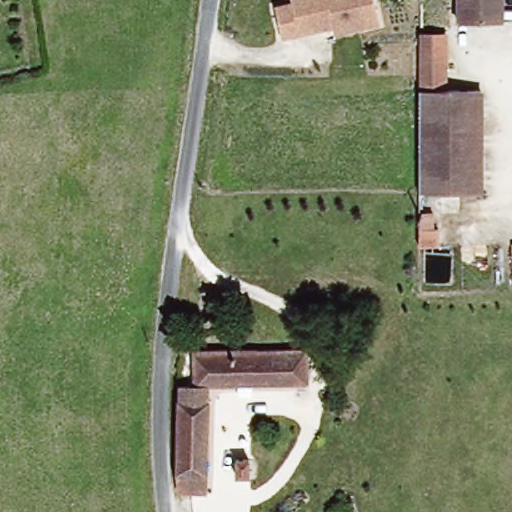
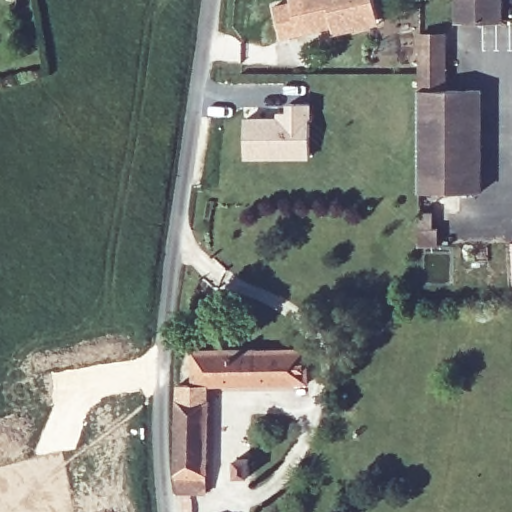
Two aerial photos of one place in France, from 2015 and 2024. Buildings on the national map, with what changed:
unchanged [(334,35),(332,26),(282,38),(273,6),(291,1),(291,0),(374,0),(379,25),(334,35)]
unchanged [(461,23),(461,0),(505,0),(506,22),(461,23)]
unchanged [(422,37),(450,37),(450,91),(423,92),(422,92),(422,76),(422,37)]
unchanged [(450,91),(486,92),(486,194),(423,193),(423,92),(450,91)]
new [(246,119),(290,119),(290,104),(311,104),(310,157),(246,156),(246,119)]
new [(432,215),(432,248),(417,248),(417,215),(432,215)]
unchanged [(509,246),(512,246),(512,286),(510,286),(509,246)]
unchanged [(191,385),(191,350),(307,350),(307,385),(207,384),(206,494),(177,493),(172,475),(176,385),(191,385)]
unchanged [(235,459),(249,459),(249,477),(235,477),(235,459)]

